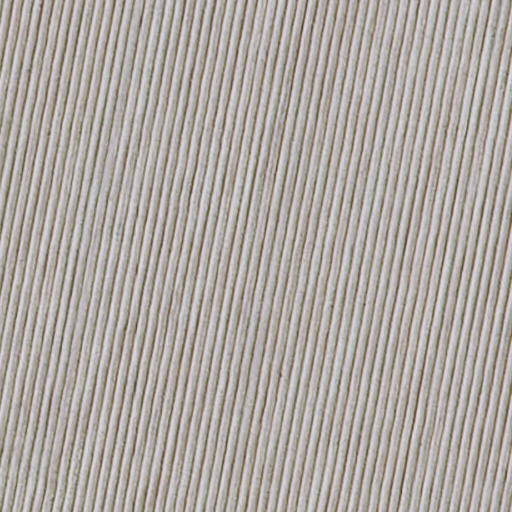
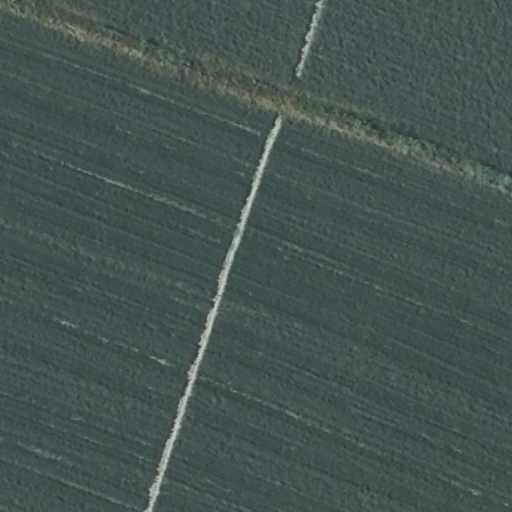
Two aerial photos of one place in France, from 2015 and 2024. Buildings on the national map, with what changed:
[]

